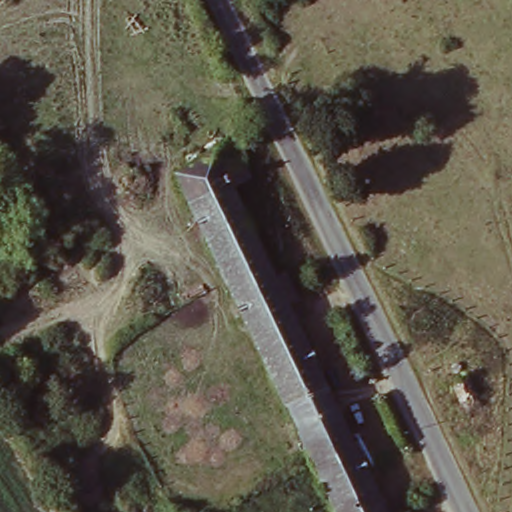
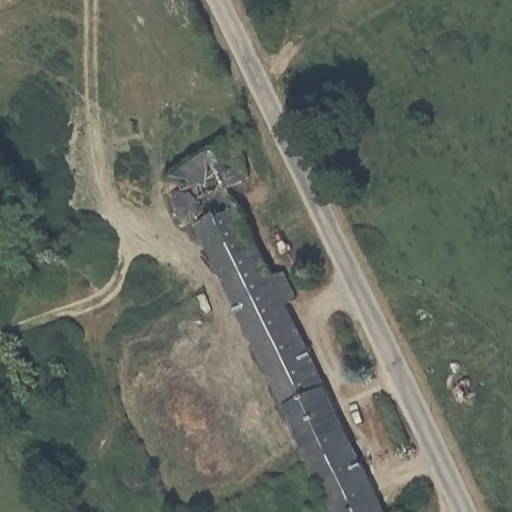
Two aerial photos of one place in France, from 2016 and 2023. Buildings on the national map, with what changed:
unchanged [(273,374),(172,174),(226,142),(245,180),(225,190),(270,284),(285,277),(297,304),(285,312),(381,512),(342,512),(315,459),(273,374)]
unchanged [(453,384),(448,388),(440,374),(455,367),(468,392),(460,397),(453,384)]

